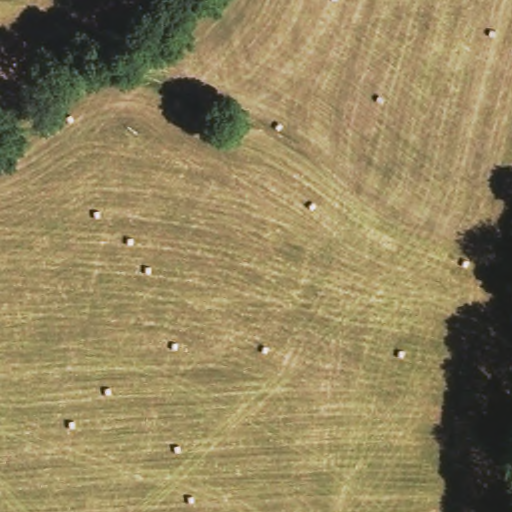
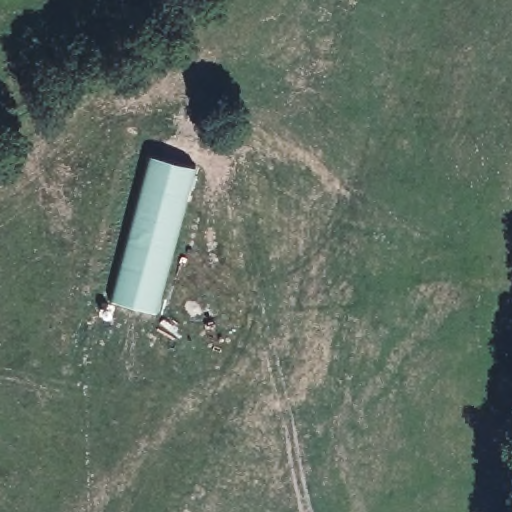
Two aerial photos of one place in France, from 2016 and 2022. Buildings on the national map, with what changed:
new [(156,140),(205,152),(169,301),(120,289),(156,140)]

